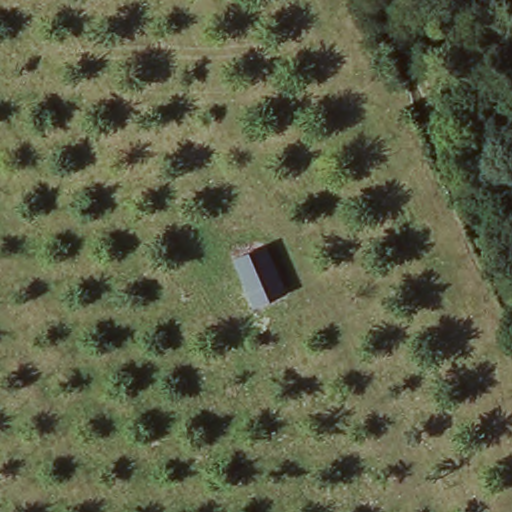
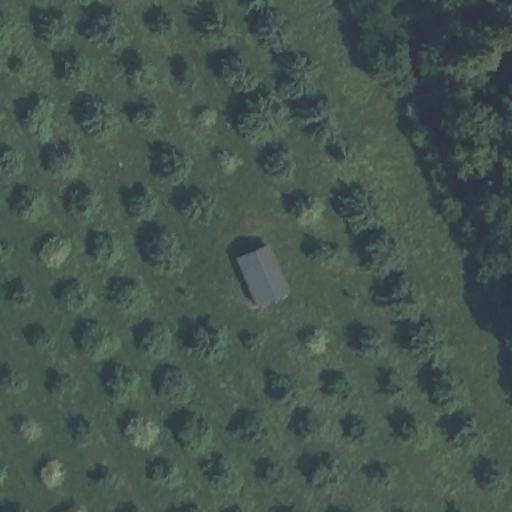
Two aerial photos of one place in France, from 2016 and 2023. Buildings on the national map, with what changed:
unchanged [(259,245),(282,288),(255,303),(232,259),(259,245)]

